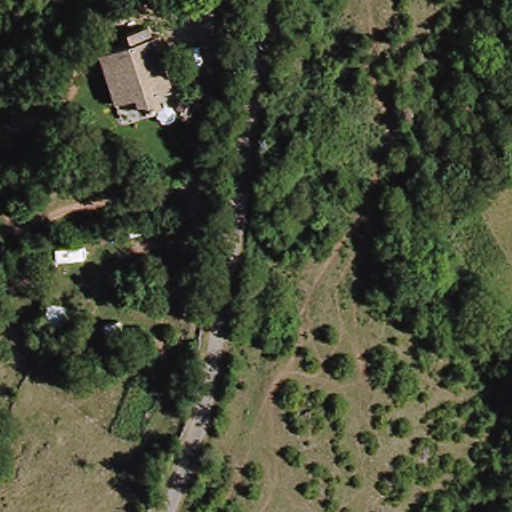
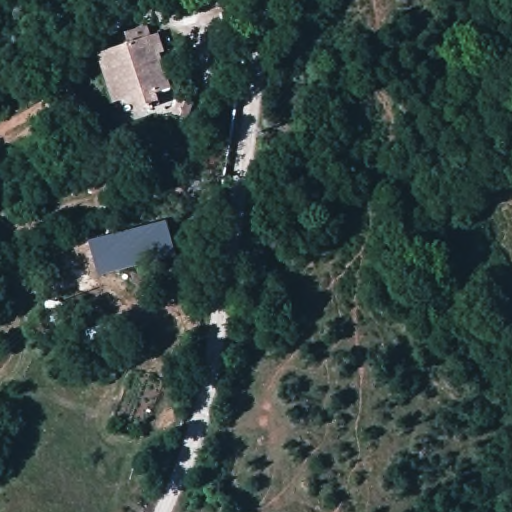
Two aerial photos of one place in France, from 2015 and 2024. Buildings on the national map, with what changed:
unchanged [(127,41),(124,31),(145,25),(148,34),(155,32),(161,51),(157,53),(167,86),(152,91),(155,104),(136,111),(131,96),(112,101),(97,51),(127,41)]
new [(168,221),(176,256),(99,276),(90,240),(168,221)]

